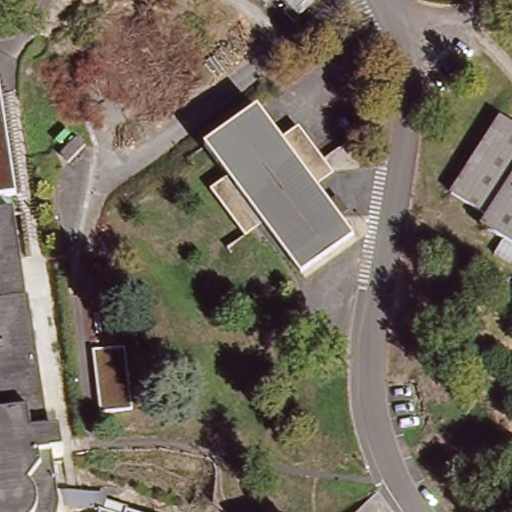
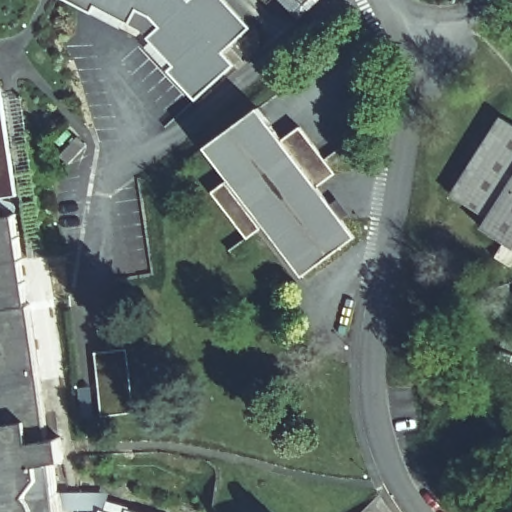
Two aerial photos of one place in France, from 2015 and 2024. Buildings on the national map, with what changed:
new [(185,3),(188,0),(216,0),(242,28),(229,40),(216,52),(226,62),(190,96),(165,69),(169,64),(147,37),(154,25),(148,18),(137,12),(129,25),(97,7),(94,14),(67,0),(182,0),(185,3)]
unchanged [(296,21),(284,7),(290,1),(288,0),(319,0),(296,21)]
unchanged [(1,77),(19,194),(0,198),(0,78),(1,77)]
unchanged [(349,207),(340,214),(355,232),(303,274),(263,224),(245,239),(210,194),(227,180),(202,149),(255,106),(262,116),(280,138),(297,125),(332,169),(315,183),(332,202),(340,196),(349,207)]
unchanged [(489,213),(454,190),(504,113),(512,118),(512,242),(482,223),(489,213)]
unchanged [(50,164),(55,159),(67,146),(74,152),(57,172),(50,164)]
unchanged [(0,213),(0,207),(1,212),(0,213)]
unchanged [(15,210),(15,212),(51,434),(64,431),(67,455),(56,457),(60,495),(62,512),(0,512),(0,213),(1,212),(15,210)]
unchanged [(109,499),(130,505),(128,512),(100,512),(100,509),(107,510),(109,499)]

